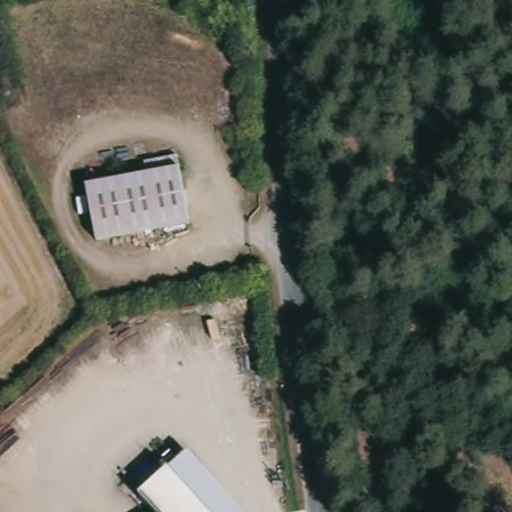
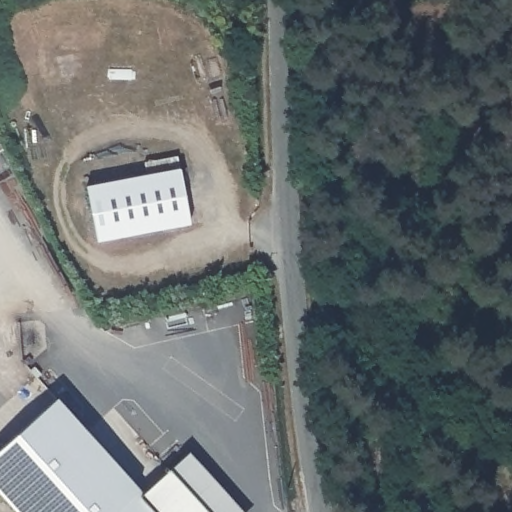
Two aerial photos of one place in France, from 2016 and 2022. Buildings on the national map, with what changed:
unchanged [(179,171),(187,223),(96,237),(88,187),(179,171)]
new [(141,498),(137,502),(146,512),(16,512),(0,494),(0,448),(56,397),(136,488),(141,498)]
new [(191,502),(200,493),(177,467),(190,452),(242,512),(199,512),(191,502)]
unchanged [(137,502),(166,475),(177,467),(200,493),(191,502),(199,512),(146,512),(137,502)]

